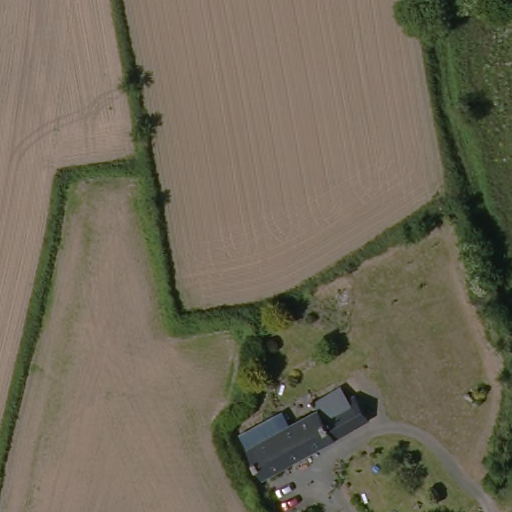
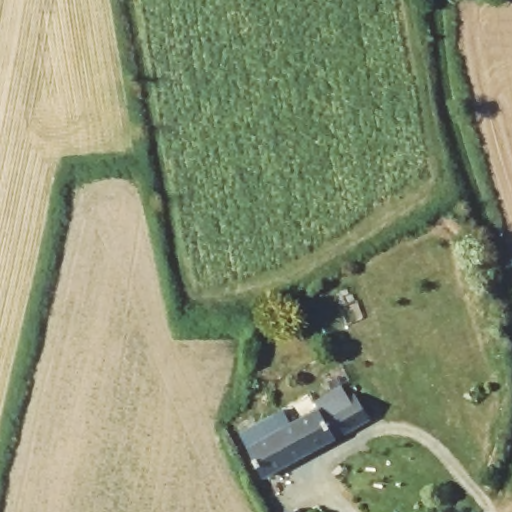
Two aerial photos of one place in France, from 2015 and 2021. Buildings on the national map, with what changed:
unchanged [(242,429),(249,426),(276,413),(283,425),(319,406),(323,412),(359,392),(374,417),(299,453),(263,471),(248,442),(242,429)]

